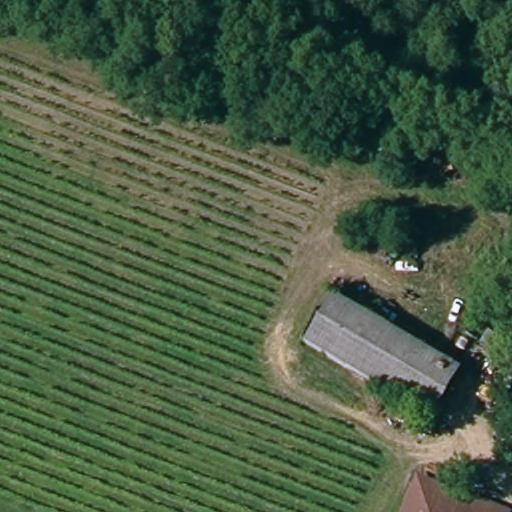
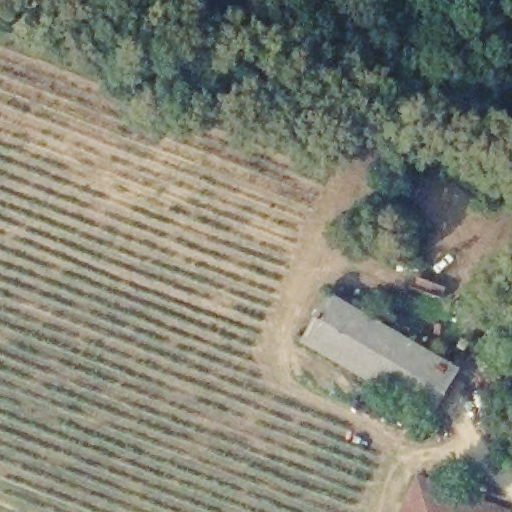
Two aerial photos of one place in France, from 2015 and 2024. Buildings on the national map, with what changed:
unchanged [(332,287),(457,365),(429,414),(303,334),(332,287)]
unchanged [(507,512),(399,512),(415,472),(469,492),(473,483),(507,496),(510,500),(507,512)]

